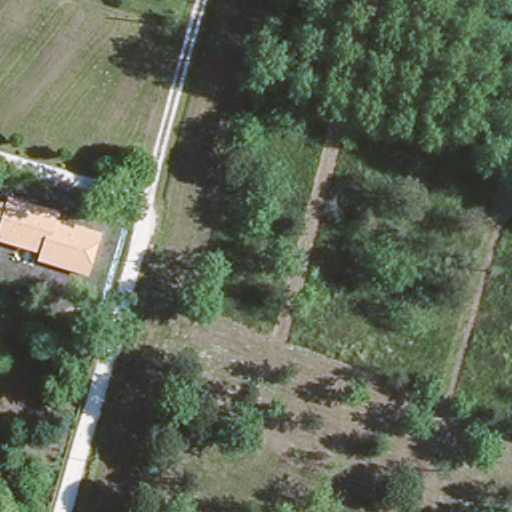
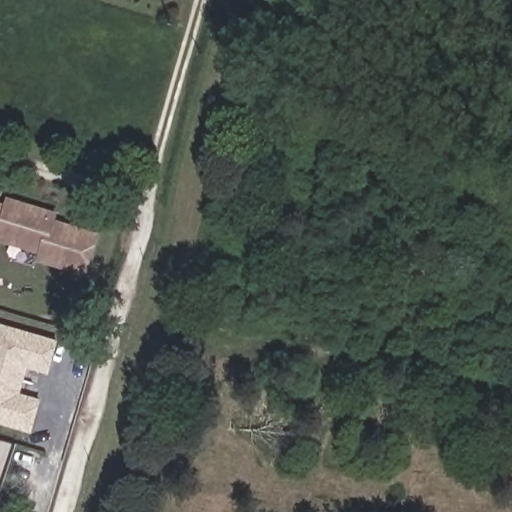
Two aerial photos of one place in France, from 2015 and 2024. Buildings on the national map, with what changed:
unchanged [(87,278),(36,263),(39,255),(0,243),(0,204),(4,205),(6,198),(58,214),(57,220),(101,234),(87,278)]
new [(41,399),(31,434),(0,425),(0,324),(58,341),(48,376),(28,371),(22,393),(41,399)]

